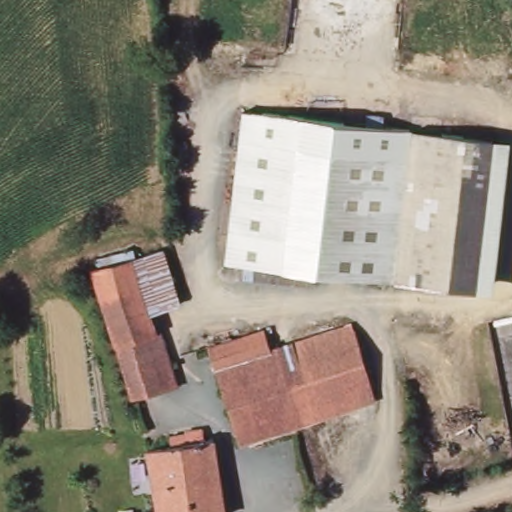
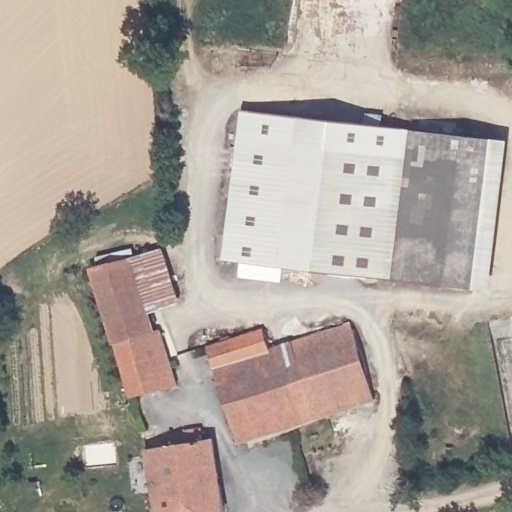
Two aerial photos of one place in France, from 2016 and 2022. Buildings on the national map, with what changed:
unchanged [(240,139),(410,158),(414,132),(493,139),(477,290),(398,278),(398,281),(226,262),(240,139)]
unchanged [(170,252),(181,310),(151,317),(138,259),(155,255),(170,252)]
unchanged [(151,317),(155,332),(114,341),(101,276),(99,268),(138,259),(151,317)]
unchanged [(213,342),(276,329),(280,350),(365,333),(381,407),(235,438),(213,342)]
unchanged [(155,332),(166,380),(123,389),(123,387),(114,341),(155,332)]
unchanged [(176,444),(174,435),(189,428),(201,427),(202,439),(215,437),(225,512),(164,512),(154,447),(176,444)]

